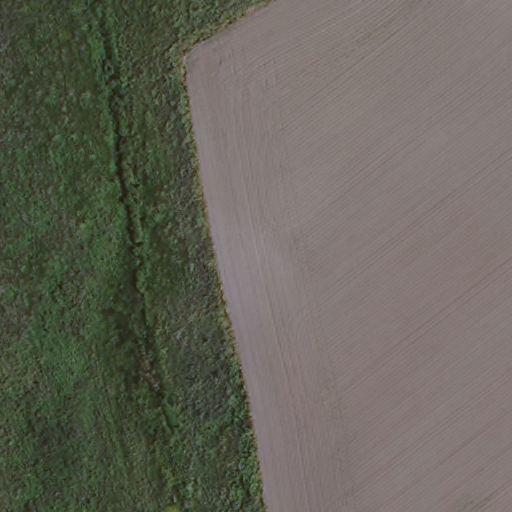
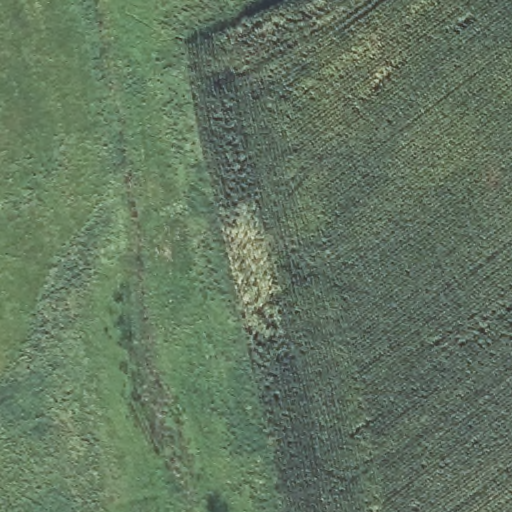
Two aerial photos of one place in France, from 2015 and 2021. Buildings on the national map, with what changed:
[]

